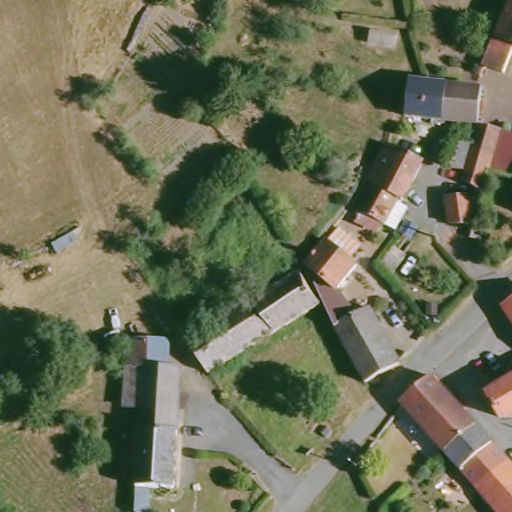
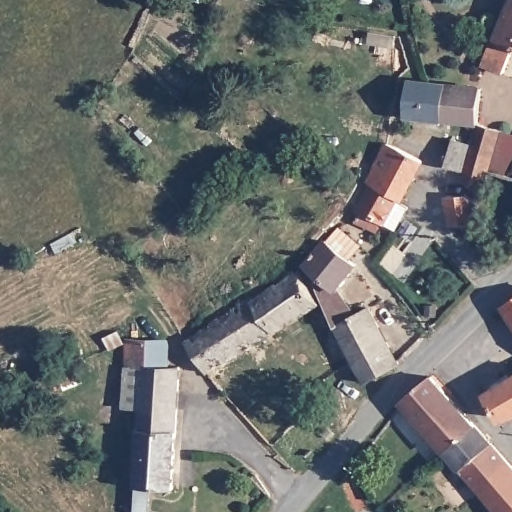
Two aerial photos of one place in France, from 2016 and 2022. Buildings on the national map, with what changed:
unchanged [(508,70),(485,62),(496,36),(500,37),(512,7),(512,57),(508,70)]
unchanged [(433,79),(474,100),(485,105),(468,136),(402,104),(420,71),(433,79)]
unchanged [(464,182),(463,175),(463,164),(464,151),(465,137),(482,139),(483,121),(510,123),(505,174),(499,194),(483,190),(482,188),(479,188),(464,182)]
unchanged [(385,141),(419,160),(404,186),(372,168),(366,164),(375,146),(385,141)]
unchanged [(397,199),(392,196),(388,201),(400,208),(390,232),(348,207),(372,168),(404,186),(397,199)]
unchanged [(465,190),(472,217),(449,221),(447,203),(446,193),(465,190)]
unchanged [(403,362),(371,392),(340,327),(308,267),(305,264),(301,258),(328,232),(332,236),(343,225),(366,246),(353,259),(359,265),(337,288),(360,311),(370,305),(403,362)]
unchanged [(392,245),(413,256),(402,278),(380,267),(392,245)]
unchanged [(255,296),(258,300),(305,271),(323,300),(210,371),(188,339),(255,296)]
unchanged [(511,309),(512,308),(512,310),(511,309)]
unchanged [(132,487),(136,429),(138,410),(120,407),(122,337),(168,340),(170,367),(180,367),(175,431),(172,490),(147,489),(147,512),(132,512),(132,487)]
unchanged [(450,452),(407,402),(433,375),(478,426),(450,452)]
unchanged [(506,415),(493,395),(512,383),(512,415),(506,415)]
unchanged [(315,431),(320,425),(328,432),(322,438),(315,431)]
unchanged [(478,426),(512,464),(512,512),(503,512),(502,511),(499,508),(452,453),(450,452),(478,426)]

